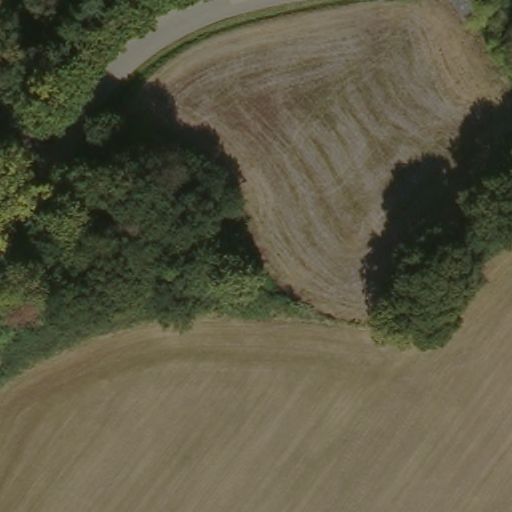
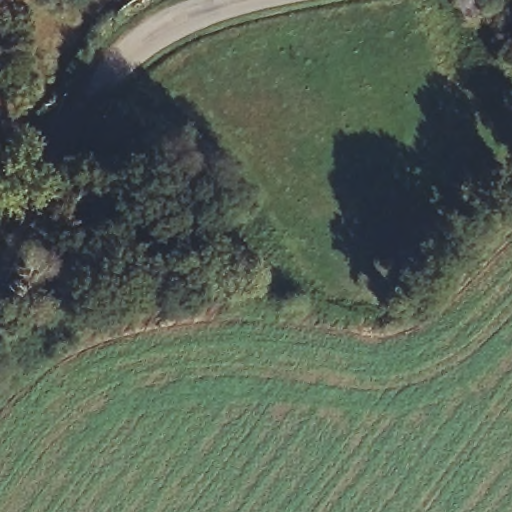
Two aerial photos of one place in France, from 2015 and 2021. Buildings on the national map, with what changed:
unchanged [(500,14),(512,35),(512,59),(501,67),(490,56),(451,0),(494,0),(500,14)]

